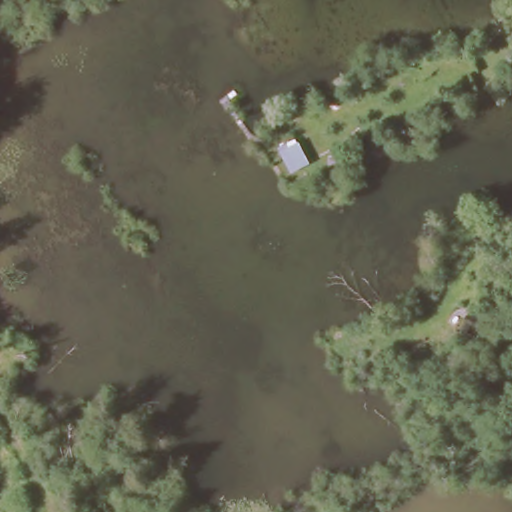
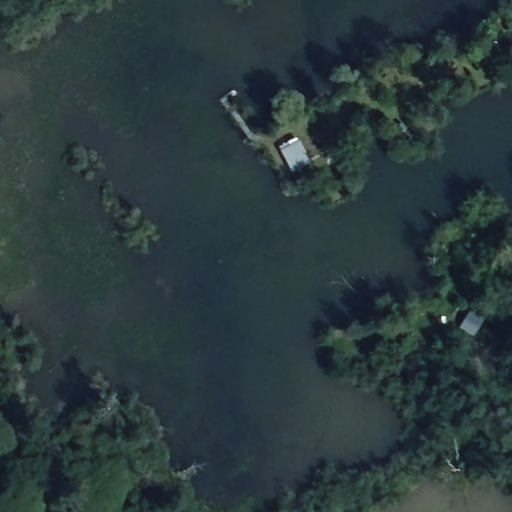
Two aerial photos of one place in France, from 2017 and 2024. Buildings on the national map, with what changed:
unchanged [(295,169),(285,151),(304,140),(314,159),(295,169)]

